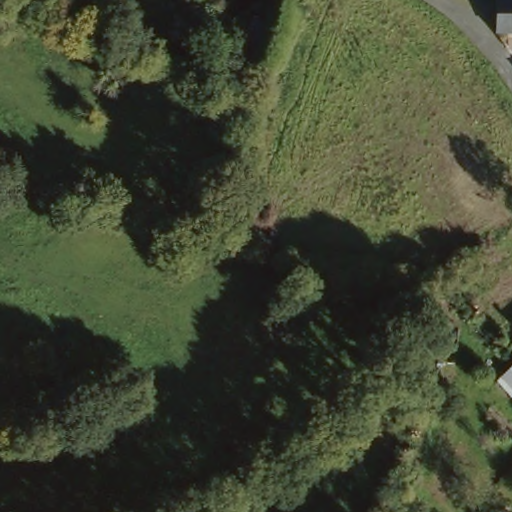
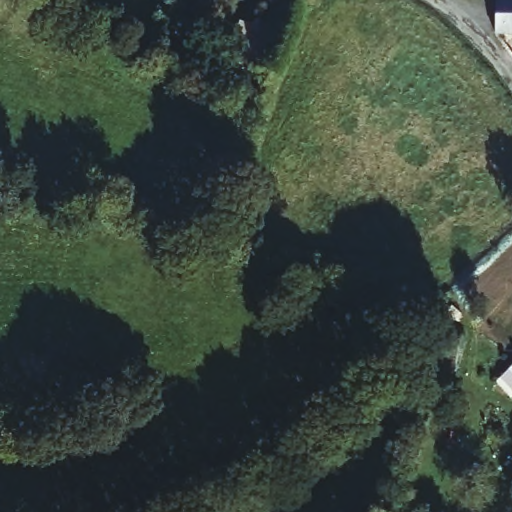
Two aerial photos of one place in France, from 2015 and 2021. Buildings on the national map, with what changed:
unchanged [(512,1),(512,34),(495,34),(495,1),(512,1)]
unchanged [(252,24),(254,20),(276,27),(262,70),(251,66),(241,63),(229,57),(241,22),(252,24)]
unchanged [(506,383),(512,377),(512,390),(506,383)]

